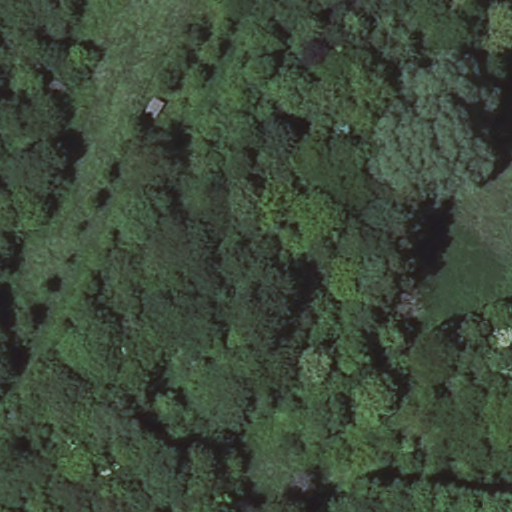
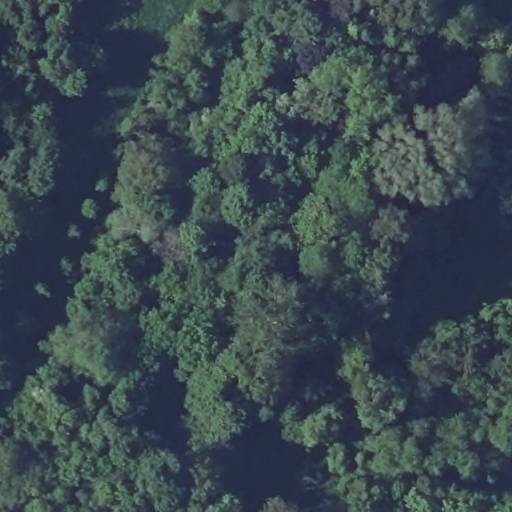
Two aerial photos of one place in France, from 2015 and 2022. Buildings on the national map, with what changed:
unchanged [(326,199),(315,228),(285,217),(295,190),(326,199)]
unchanged [(333,406),(307,392),(321,360),(345,372),(333,406)]

